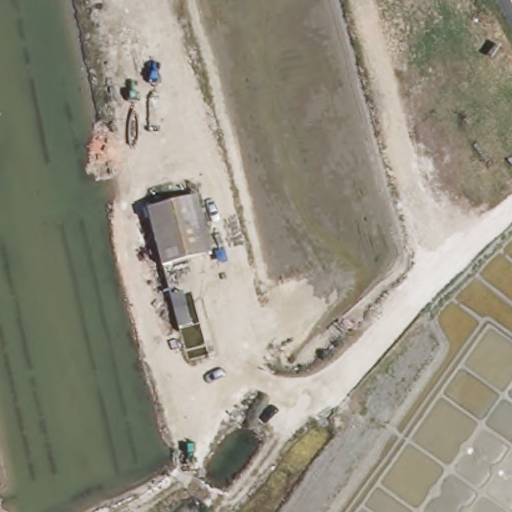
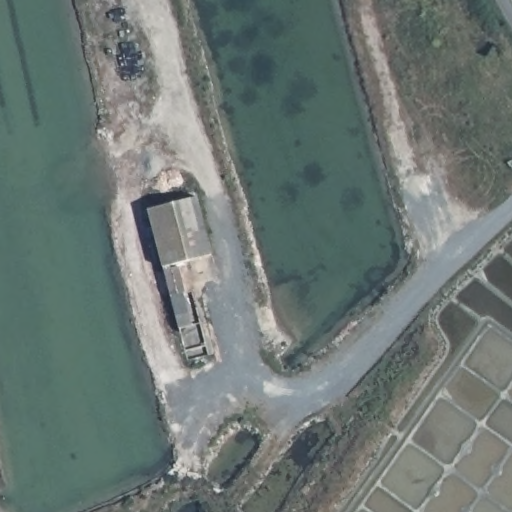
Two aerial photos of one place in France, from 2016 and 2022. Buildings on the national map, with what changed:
unchanged [(163,208),(193,200),(202,197),(218,257),(206,260),(176,268),(165,271),(149,212),(163,208)]

